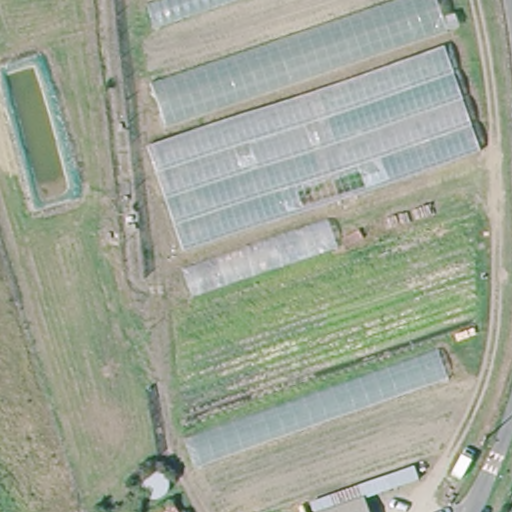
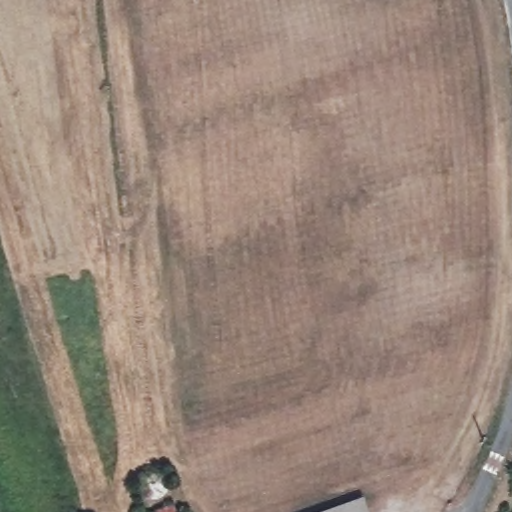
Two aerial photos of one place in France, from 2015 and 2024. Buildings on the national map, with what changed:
demolished [(146,0),(238,0),(153,29),(146,0)]
demolished [(436,0),(447,31),(166,127),(151,79),(384,0),(436,0)]
demolished [(478,150),(330,205),(343,246),(192,295),(148,145),(443,45),(478,150)]
demolished [(436,352),(448,381),(187,473),(176,444),(436,352)]
unchanged [(393,488),(363,501),(367,512),(313,512),(310,504),(385,477),(393,488)]

